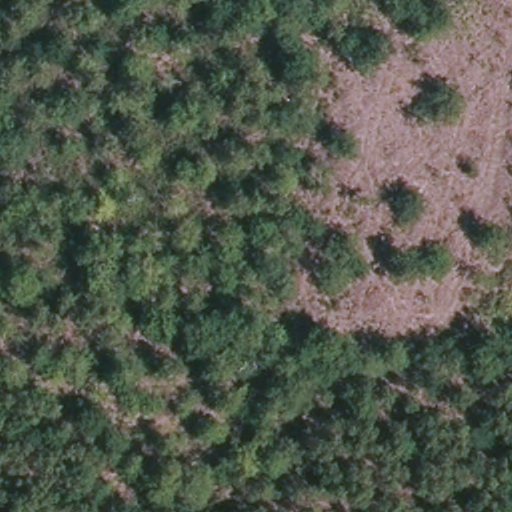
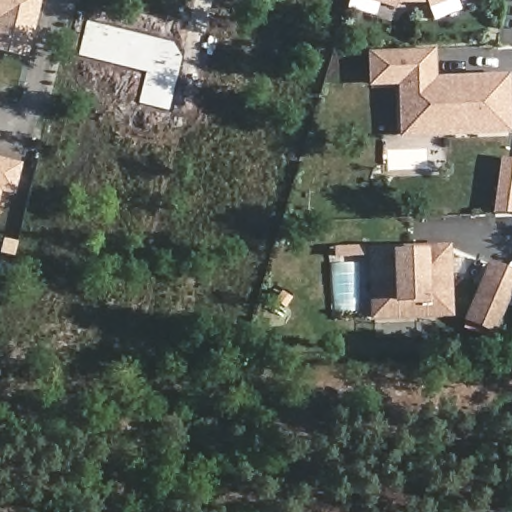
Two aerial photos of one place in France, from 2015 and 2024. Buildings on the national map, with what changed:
new [(42,0),(29,58),(0,52),(0,0),(42,0)]
new [(427,5),(397,5),(397,9),(369,0),(451,0),(428,9),(427,5)]
new [(86,20),(173,41),(182,56),(169,110),(138,103),(146,71),(77,55),(86,20)]
new [(510,74),(512,134),(400,138),(398,86),(367,88),(367,50),(435,48),(437,77),(510,74)]
new [(22,162),(15,196),(0,194),(0,158),(22,162)]
new [(512,162),(512,206),(511,212),(490,215),(495,182),(498,160),(512,162)]
new [(453,318),(369,321),(367,248),(450,244),(453,318)]
new [(462,320),(488,261),(512,271),(512,292),(493,335),(462,320)]

